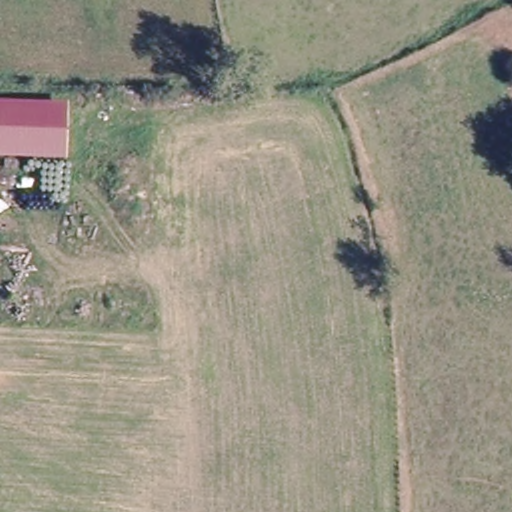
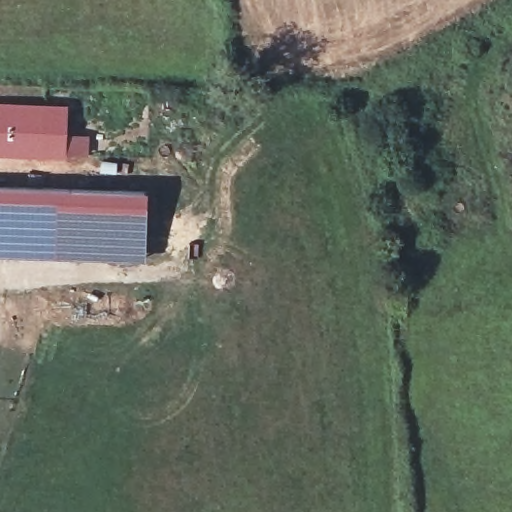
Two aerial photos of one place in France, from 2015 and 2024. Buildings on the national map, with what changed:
unchanged [(63,103),(63,154),(0,154),(0,102),(63,103)]
new [(74,187),(72,258),(0,255),(0,185),(74,187)]
new [(72,258),(74,187),(148,188),(147,259),(72,258)]

